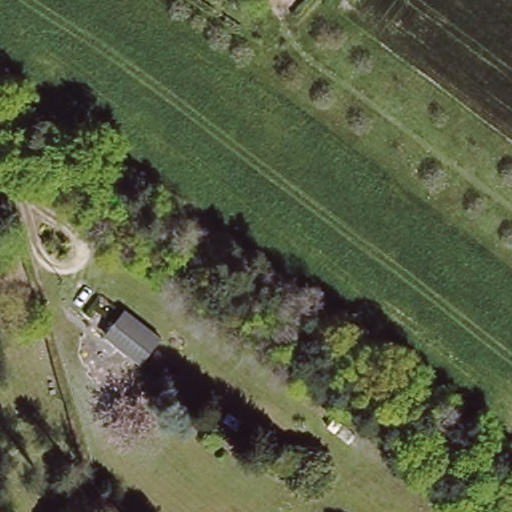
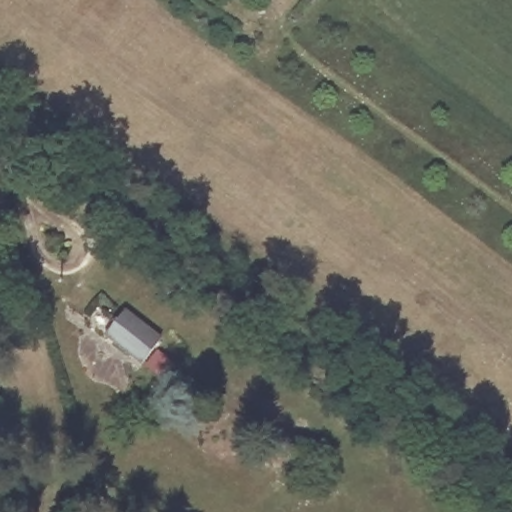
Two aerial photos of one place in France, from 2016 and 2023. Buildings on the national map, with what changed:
unchanged [(122,310),(160,340),(142,363),(106,335),(122,310)]

